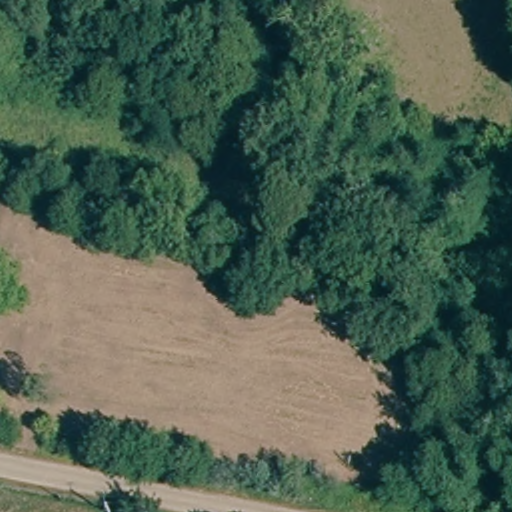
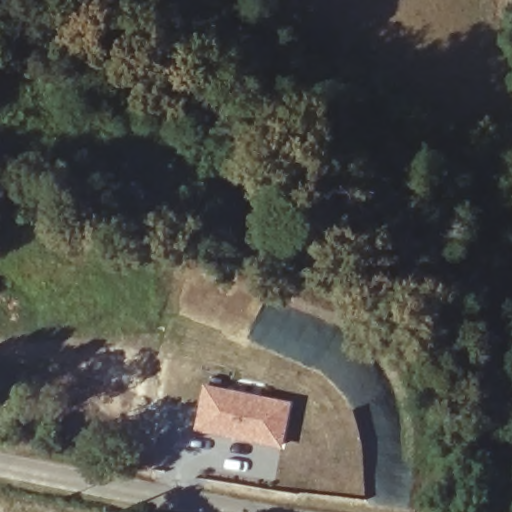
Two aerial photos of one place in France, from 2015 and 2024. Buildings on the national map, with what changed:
new [(293,401),(284,450),(195,433),(203,385),(293,401)]

